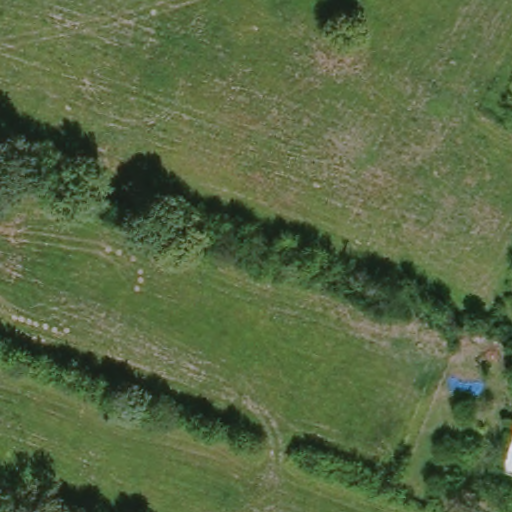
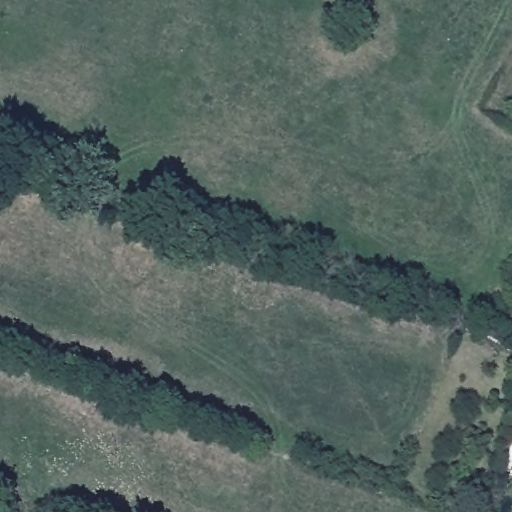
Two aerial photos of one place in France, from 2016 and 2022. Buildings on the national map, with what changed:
[]

